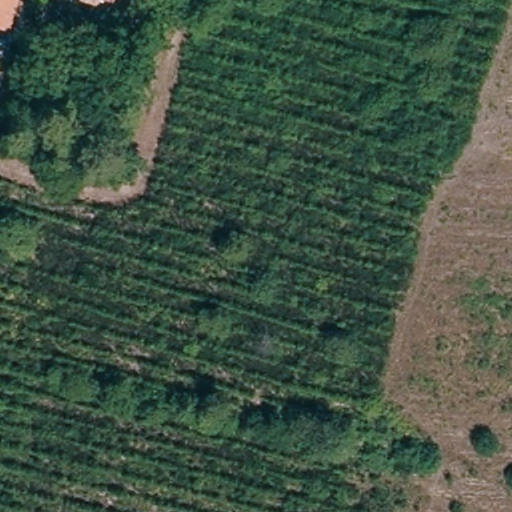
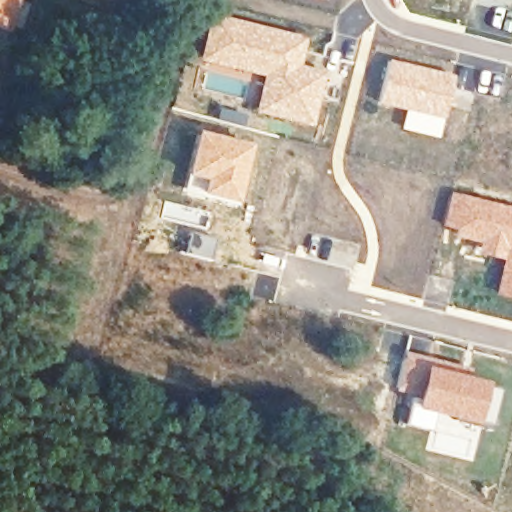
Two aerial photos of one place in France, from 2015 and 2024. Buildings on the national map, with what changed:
unchanged [(6,28),(0,26),(0,0),(14,0),(6,28)]
unchanged [(110,1),(108,0),(110,0),(110,1)]
new [(208,11),(307,36),(301,64),(326,69),(311,127),(252,112),(260,77),(197,61),(208,11)]
new [(375,103),(386,57),(454,76),(443,120),(438,140),(398,129),(402,110),(375,103)]
new [(194,130),(251,144),(234,204),(182,188),(194,130)]
new [(512,206),(512,299),(493,294),(501,260),(476,252),(478,244),(441,229),(450,191),(512,206)]
new [(188,232),(215,238),(208,261),(181,254),(188,232)]
new [(256,272),(279,278),(273,301),(250,295),(256,272)]
new [(489,426),(473,422),(471,425),(412,410),(415,397),(395,391),(404,354),(425,361),(428,362),(427,364),(484,382),(499,388),(489,426)]

